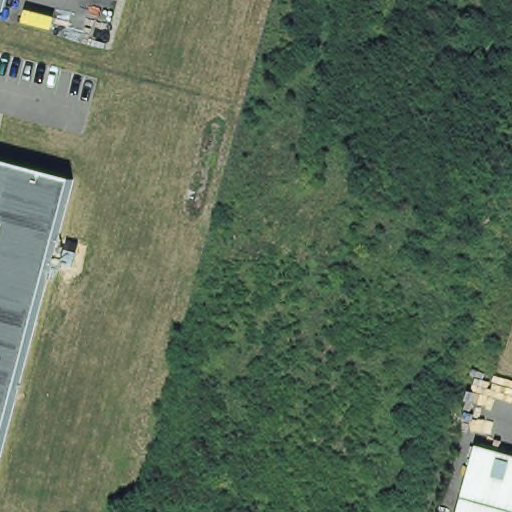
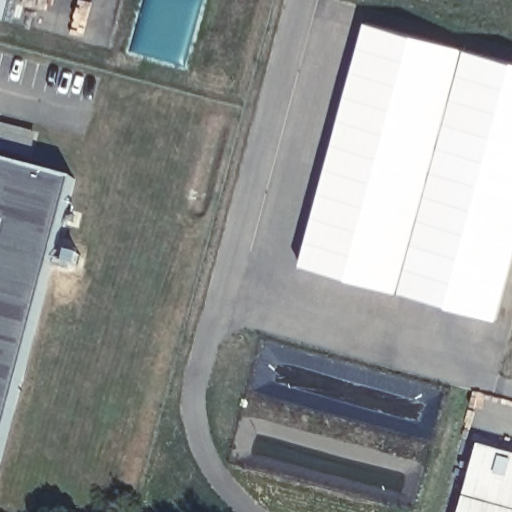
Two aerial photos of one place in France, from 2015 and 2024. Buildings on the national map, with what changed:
unchanged [(0,17),(0,0),(6,0),(1,17),(0,17)]
new [(512,60),(512,267),(498,320),(299,265),(365,21),(512,60)]
unchanged [(76,182),(60,241),(70,243),(90,248),(81,277),(52,270),(0,467),(0,162),(76,182)]
unchanged [(512,455),(512,507),(469,495),(464,494),(477,446),(482,447),(512,455)]

